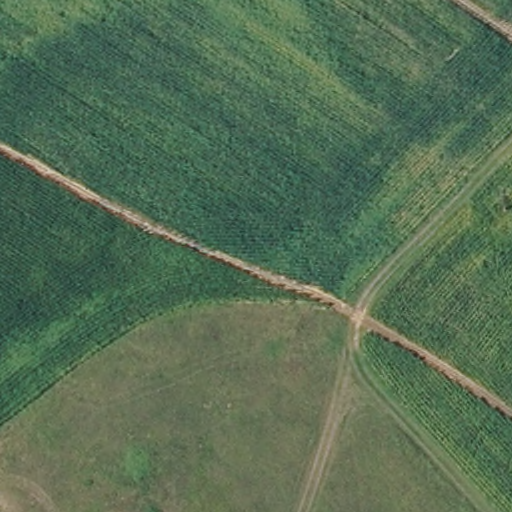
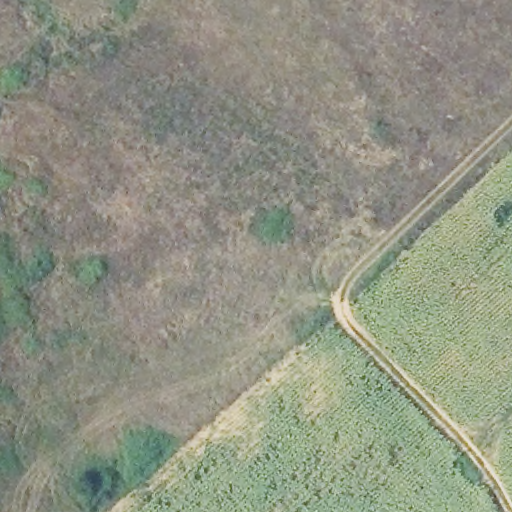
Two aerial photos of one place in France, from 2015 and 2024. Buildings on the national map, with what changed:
[]

